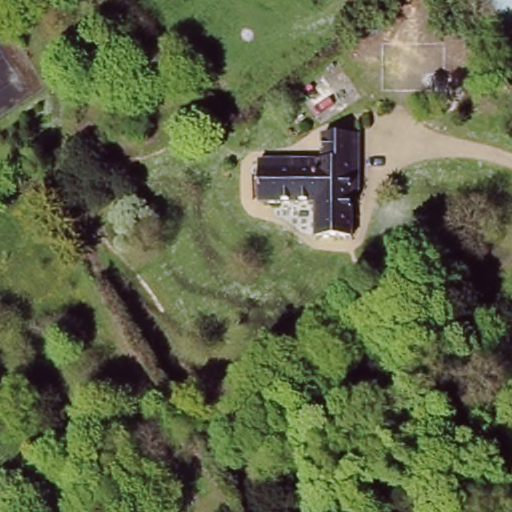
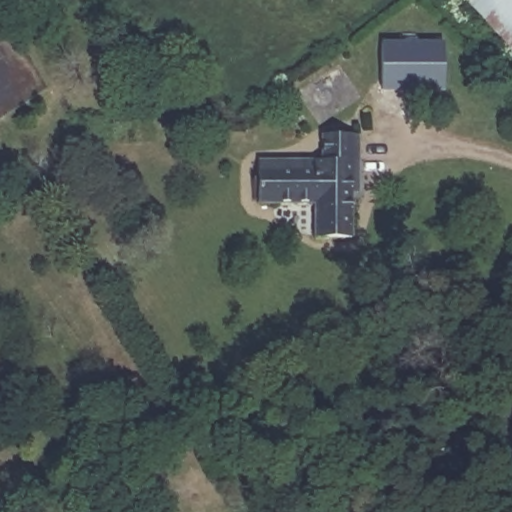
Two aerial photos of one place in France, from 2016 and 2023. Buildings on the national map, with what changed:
unchanged [(458,0),(512,0),(512,59),(458,0)]
new [(383,41),(443,40),(444,91),(381,90),(383,41)]
unchanged [(323,134),(356,134),(356,193),(351,193),(350,239),(316,238),(316,203),(258,202),(259,160),(322,161),(323,134)]

